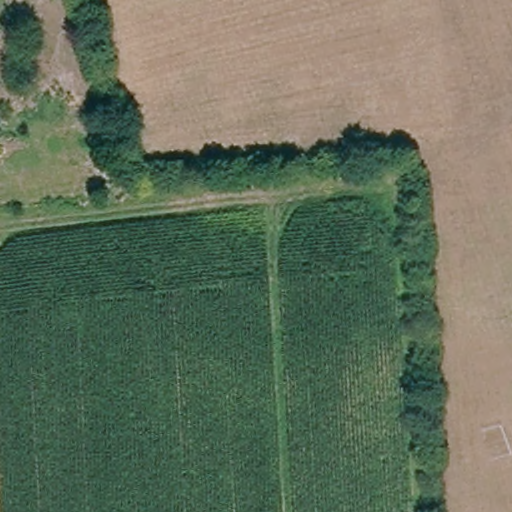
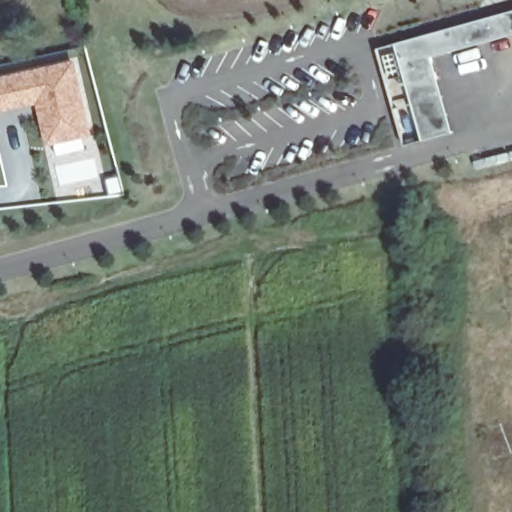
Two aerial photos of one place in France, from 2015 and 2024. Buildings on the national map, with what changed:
new [(451,129),(421,137),(394,40),(512,8),(512,30),(431,55),(451,129)]
new [(92,135),(47,145),(37,104),(0,112),(0,76),(75,59),(92,135)]

